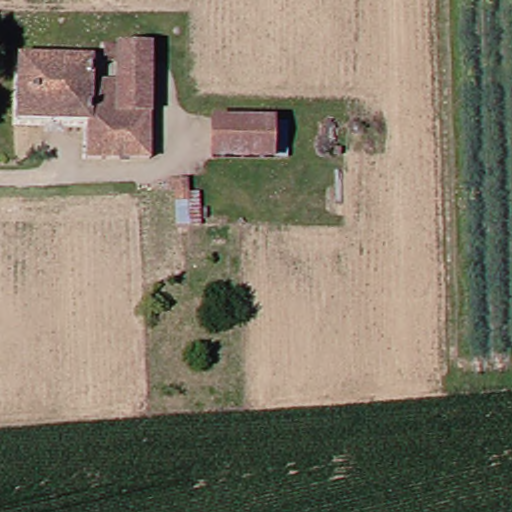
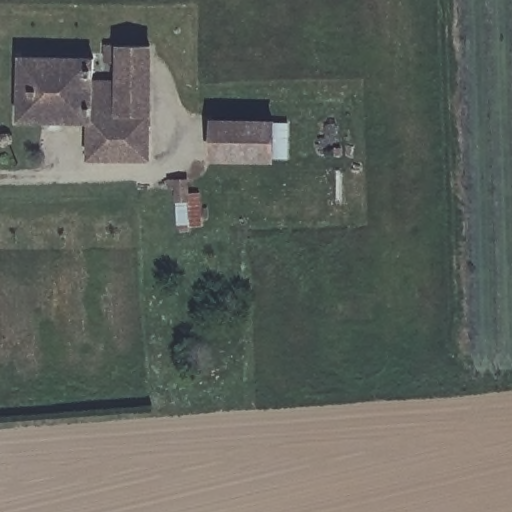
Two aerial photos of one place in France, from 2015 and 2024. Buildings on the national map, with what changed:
unchanged [(83,119),(11,117),(11,59),(102,62),(102,50),(144,50),(145,160),(84,158),(83,119)]
unchanged [(207,123),(267,123),(267,159),(207,158),(207,123)]

